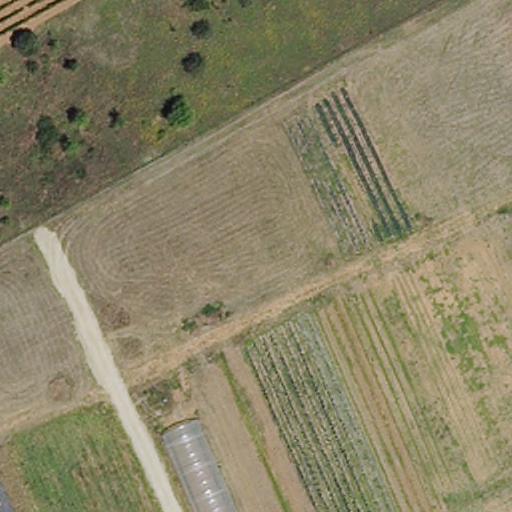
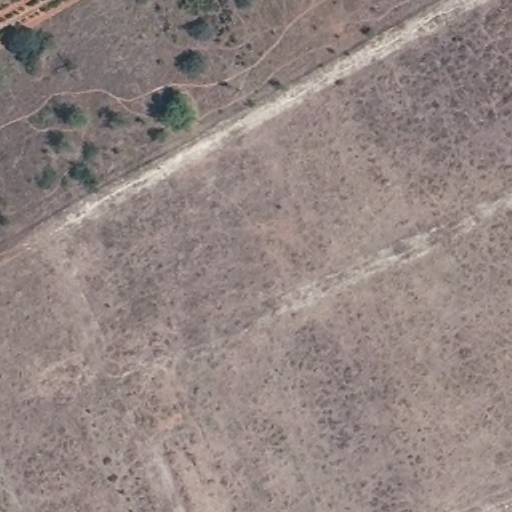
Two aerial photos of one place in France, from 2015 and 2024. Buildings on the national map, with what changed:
new [(193,512),(165,448),(204,432),(235,512),(193,512)]

